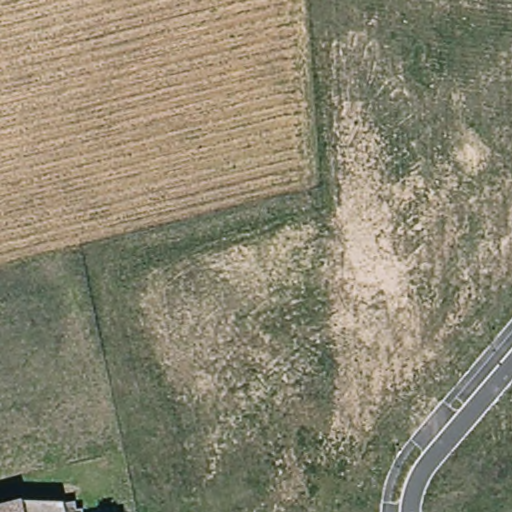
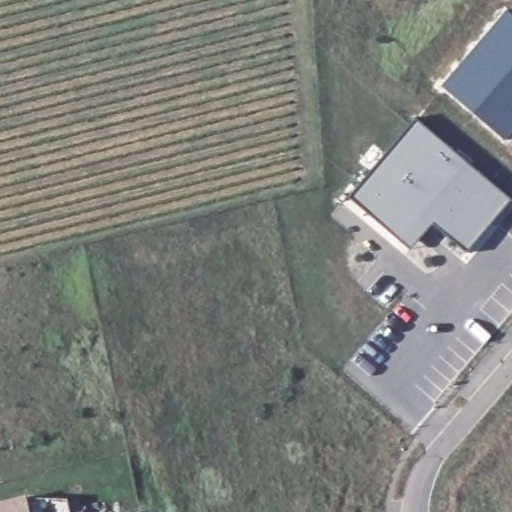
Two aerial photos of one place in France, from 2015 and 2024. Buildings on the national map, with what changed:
new [(505,11),(512,17),(512,130),(508,135),(505,132),(501,137),(473,113),(441,86),(505,11)]
new [(411,250),(348,198),(415,120),(511,200),(466,253),(433,225),(411,250)]
unchanged [(63,500),(65,512),(0,512),(0,503),(20,497),(63,500)]

